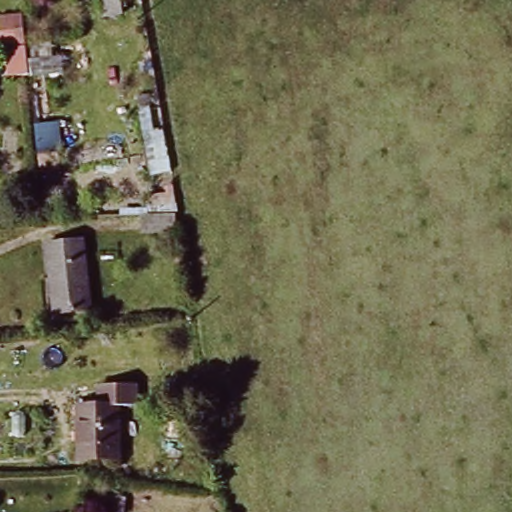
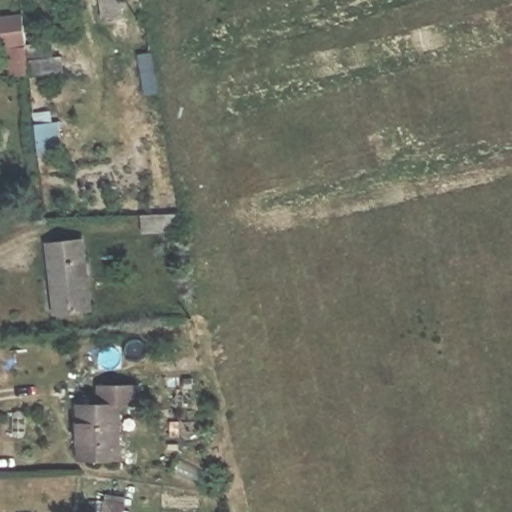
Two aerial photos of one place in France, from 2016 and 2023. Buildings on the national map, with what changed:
unchanged [(127,7),(108,10),(106,0),(126,0),(127,7)]
unchanged [(0,11),(27,10),(33,43),(4,46),(0,19),(0,11)]
unchanged [(34,67),(32,47),(89,45),(90,63),(34,67)]
unchanged [(54,126),(57,160),(41,162),(37,128),(54,126)]
unchanged [(174,218),(175,235),(144,236),(143,219),(174,218)]
unchanged [(91,304),(55,308),(51,268),(49,254),(47,238),(82,234),(91,304)]
unchanged [(79,404),(100,404),(100,385),(137,385),(137,405),(119,405),(120,458),(80,459),(80,439),(80,427),(79,404)]
unchanged [(126,503),(124,512),(105,512),(107,500),(126,503)]

